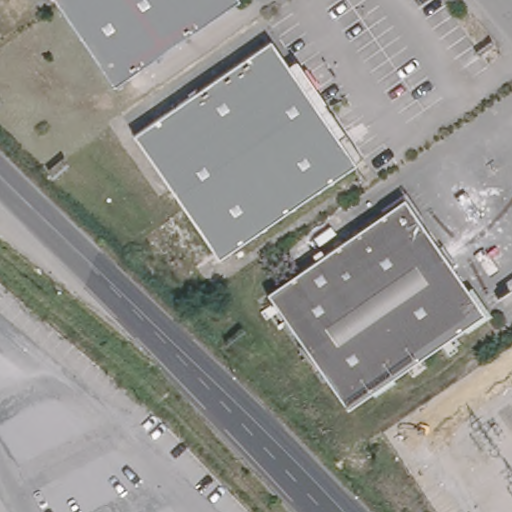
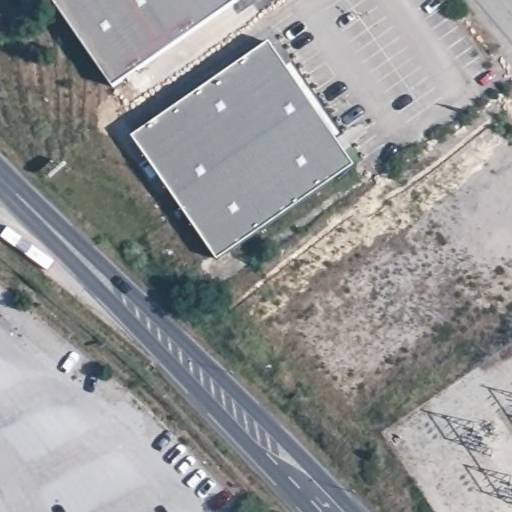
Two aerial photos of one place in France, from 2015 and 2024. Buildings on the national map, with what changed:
unchanged [(53,0),(235,0),(112,84),(53,0)]
unchanged [(270,42),(287,66),(297,60),(345,132),(337,139),(356,166),(219,261),(133,136),(270,42)]
demolished [(396,382),(375,396),(372,391),(350,407),(331,380),(322,385),(312,370),(320,365),(315,357),(308,362),(299,350),(307,345),(302,337),(294,341),(284,327),(291,320),(271,290),(384,215),(383,209),(407,192),(426,222),(423,225),(440,251),(444,248),(458,265),(453,270),(468,291),(474,289),(491,315),(468,332),(464,328),(393,377),(396,382)]

